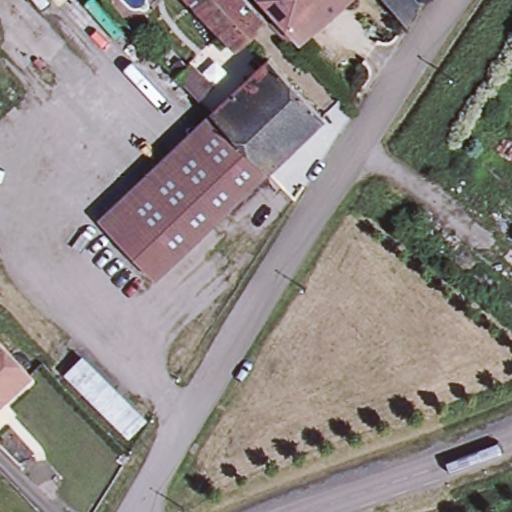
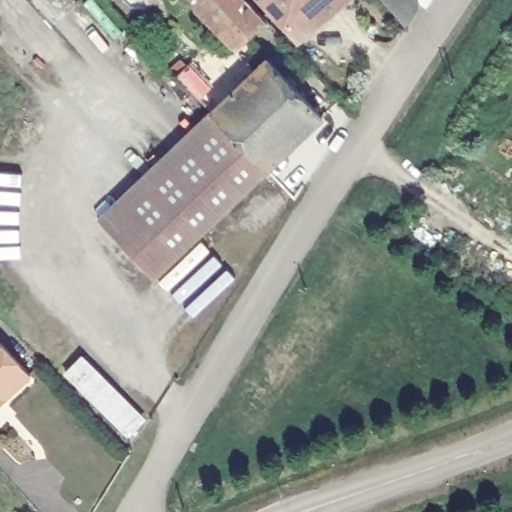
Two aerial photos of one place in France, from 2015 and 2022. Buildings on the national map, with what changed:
unchanged [(224,41),(184,0),(246,0),(256,11),(224,41)]
unchanged [(292,40),(259,0),(304,0),(318,16),(292,40)]
unchanged [(304,0),(336,0),(318,16),(304,0)]
unchanged [(401,20),(383,0),(409,0),(412,4),(401,20)]
unchanged [(179,60),(206,88),(194,100),(166,71),(179,60)]
unchanged [(263,61),(318,117),(296,139),(241,82),(263,61)]
unchanged [(241,82),(296,139),(262,172),(208,115),(241,82)]
unchanged [(241,192),(187,135),(208,115),(262,172),(241,192)]
unchanged [(241,192),(150,280),(95,224),(187,135),(241,192)]
unchanged [(30,372),(3,397),(0,400),(0,340),(30,372)]
unchanged [(78,357),(136,422),(125,432),(66,368),(78,357)]

